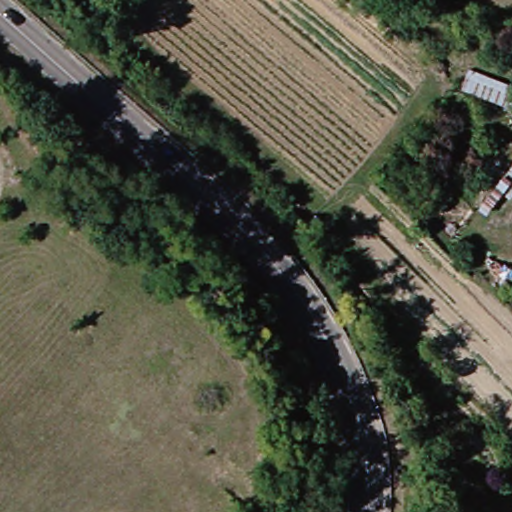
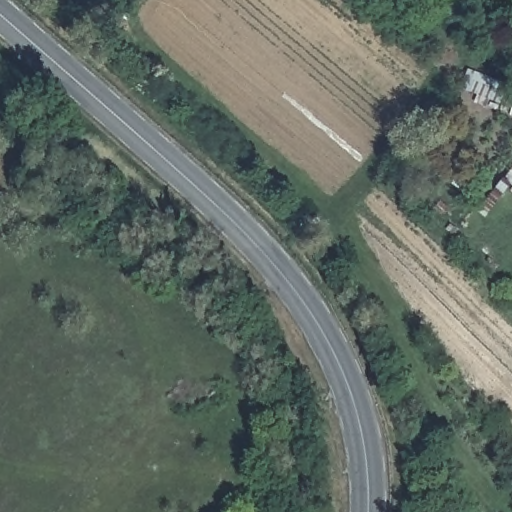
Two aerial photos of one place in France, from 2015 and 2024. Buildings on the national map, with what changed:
unchanged [(512,115),(467,92),(478,74),(512,91),(512,115)]

